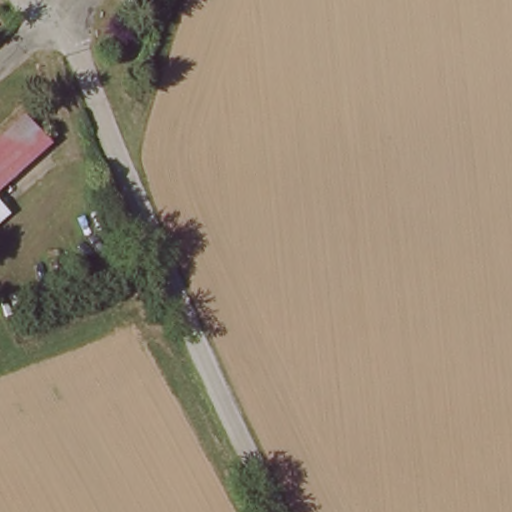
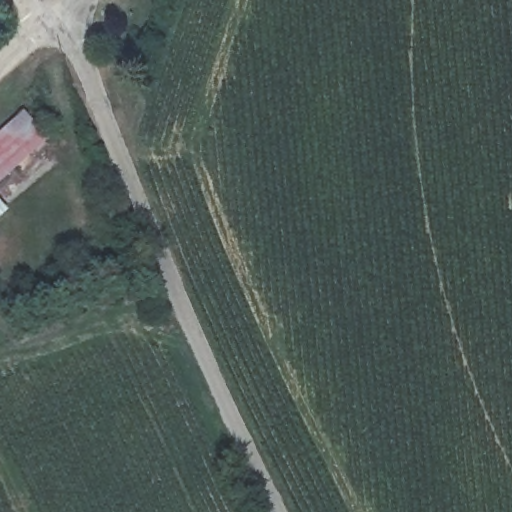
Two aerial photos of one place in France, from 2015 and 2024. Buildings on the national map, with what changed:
unchanged [(25,113),(49,139),(0,181),(0,133),(25,113)]
unchanged [(6,208),(0,212),(0,201),(6,208)]

